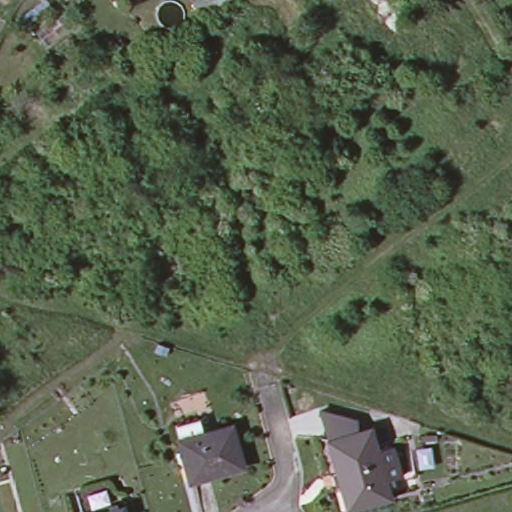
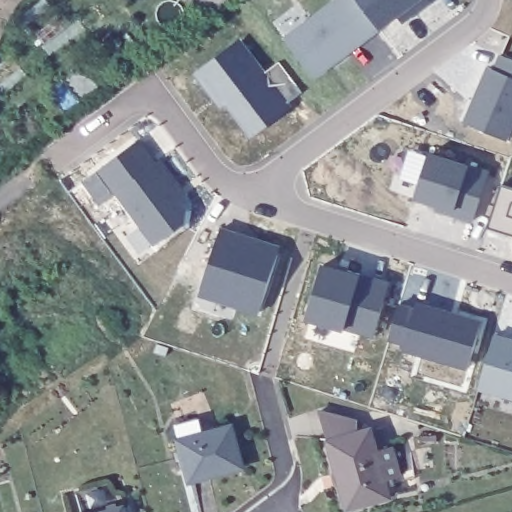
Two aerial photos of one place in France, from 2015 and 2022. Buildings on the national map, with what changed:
unchanged [(197,0),(230,0),(209,16),(197,0)]
new [(335,0),(429,0),(430,3),(402,22),(397,17),(381,27),(315,79),(284,37),(335,0)]
new [(225,104),(219,107),(194,73),(242,39),(266,72),(281,61),(302,91),(287,101),(292,107),(250,137),(225,104)]
new [(486,65),(493,68),(500,54),(512,59),(512,127),(506,140),(463,123),(486,65)]
new [(115,192),(99,168),(140,138),(158,162),(189,207),(184,225),(154,246),(115,192)]
new [(435,211),(436,206),(415,199),(429,152),(469,165),(490,173),(473,223),(435,211)]
new [(221,227),(282,247),(260,315),(199,295),(221,227)]
new [(322,263),(360,273),(390,283),(374,338),(345,330),(306,320),(322,263)]
new [(399,305),(415,308),(418,301),(482,320),(467,371),(403,352),(405,342),(390,338),(399,305)]
new [(512,339),(512,399),(478,389),(494,333),(512,339)]
demolished [(462,339),(459,350),(437,345),(440,334),(462,339)]
unchanged [(372,454),(380,452),(387,475),(379,477),(385,500),(345,511),(324,443),(315,414),(352,422),(355,435),(365,432),(372,454)]
unchanged [(243,466),(190,481),(179,440),(174,423),(198,417),(202,433),(232,425),(243,466)]
unchanged [(124,508),(125,512),(109,512),(124,508)]

